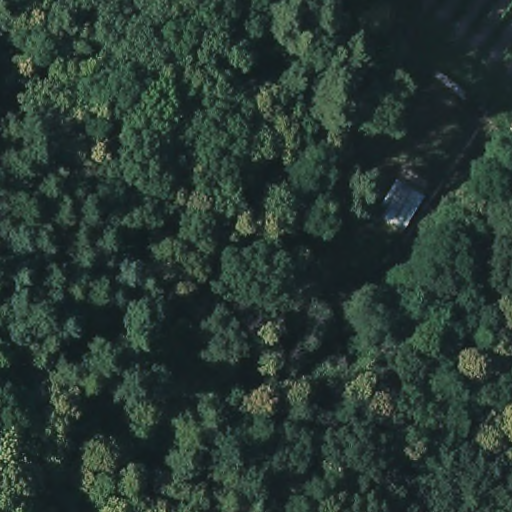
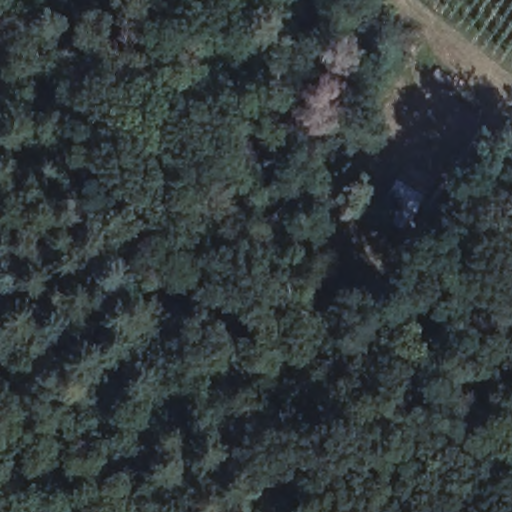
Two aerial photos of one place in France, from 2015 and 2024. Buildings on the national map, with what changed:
unchanged [(375,223),(400,179),(436,205),(412,243),(375,223)]

